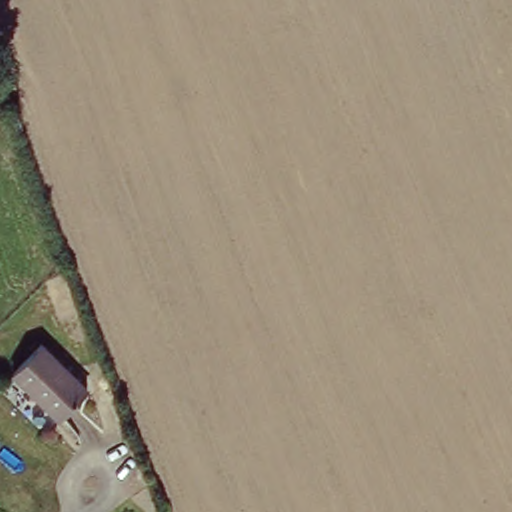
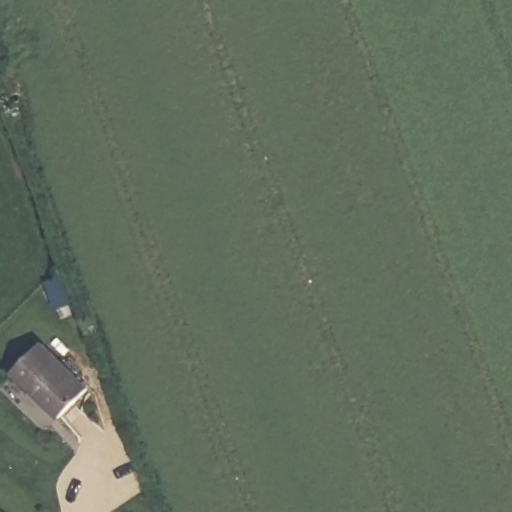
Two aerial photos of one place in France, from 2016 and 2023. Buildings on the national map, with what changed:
unchanged [(19,371),(43,343),(88,385),(61,415),(19,371)]

